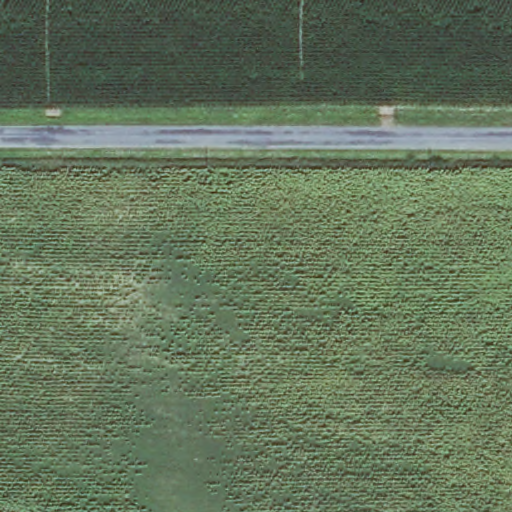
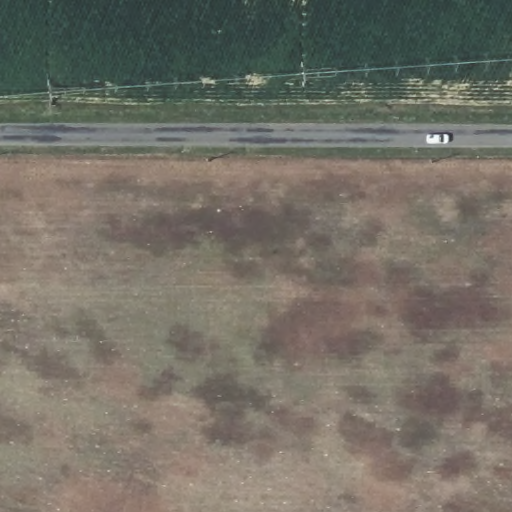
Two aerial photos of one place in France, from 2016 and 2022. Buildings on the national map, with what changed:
[]

